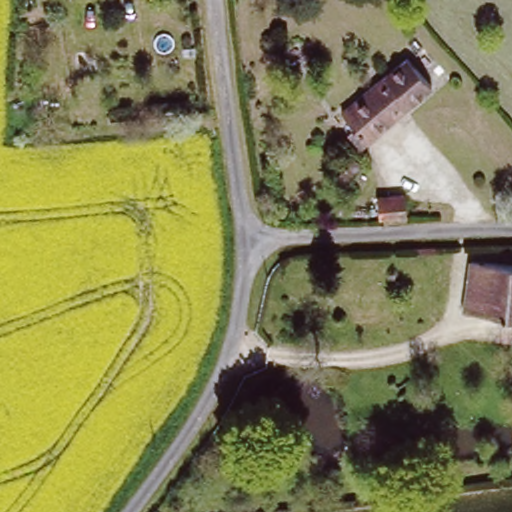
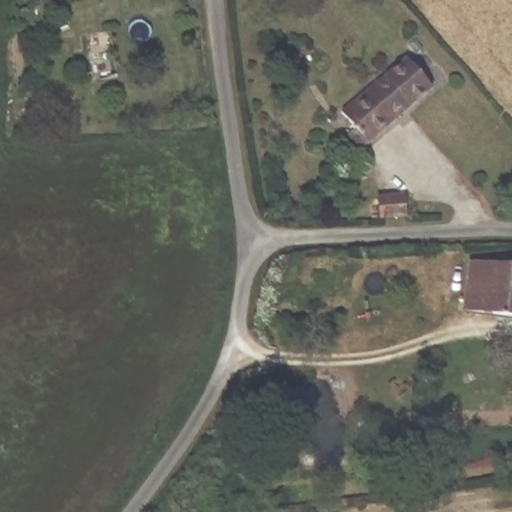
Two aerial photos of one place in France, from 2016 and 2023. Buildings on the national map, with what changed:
unchanged [(404,61),(428,94),(356,149),(346,135),(351,129),(337,110),(404,61)]
unchanged [(355,155),(362,162),(346,180),(339,174),(355,155)]
unchanged [(401,189),(402,209),(377,209),(376,190),(401,189)]
unchanged [(469,256),(512,261),(512,318),(463,313),(469,256)]

